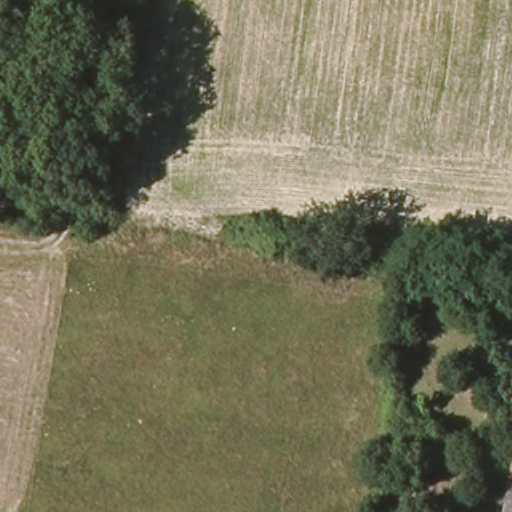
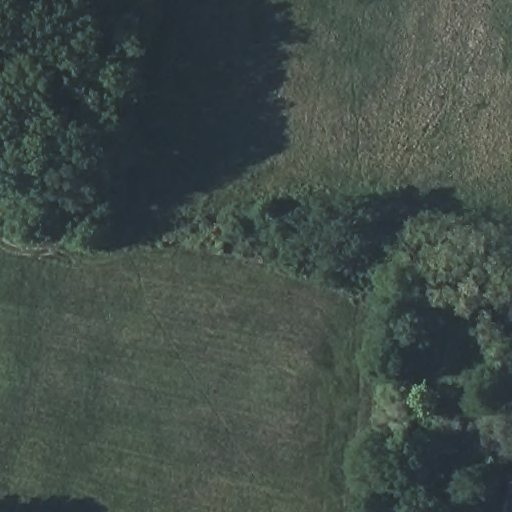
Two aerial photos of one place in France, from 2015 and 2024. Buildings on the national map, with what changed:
unchanged [(387,382),(456,394),(453,418),(384,407),(387,382)]

